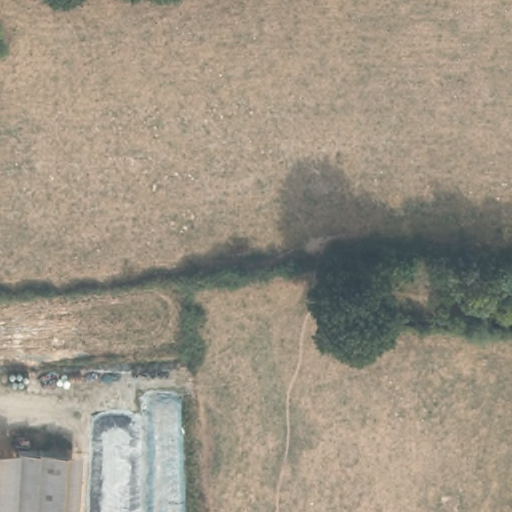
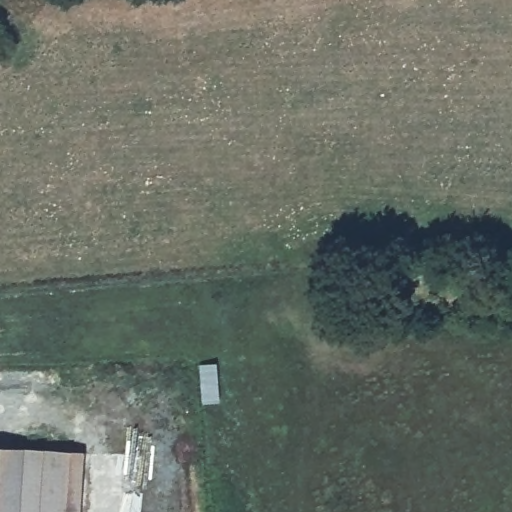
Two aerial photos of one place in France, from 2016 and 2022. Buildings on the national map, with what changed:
unchanged [(68,455),(63,512),(0,512),(0,448),(68,455)]

